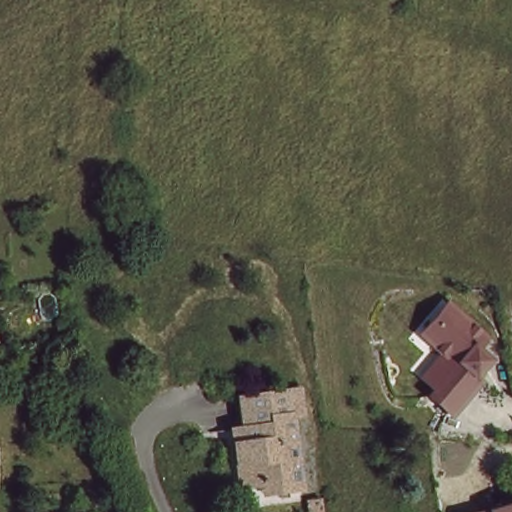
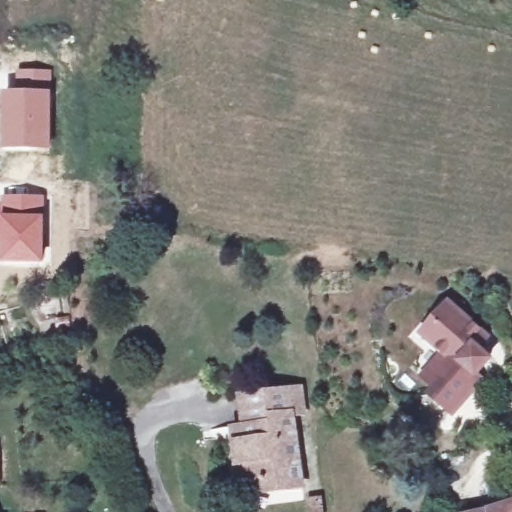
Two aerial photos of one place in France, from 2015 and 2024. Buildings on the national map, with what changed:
new [(17,69),(52,69),(52,91),(51,150),(4,150),(4,91),(17,90),(17,69)]
new [(3,194),(44,195),(44,263),(0,264),(0,234),(2,209),(3,194)]
new [(0,234),(0,209),(2,209),(0,234)]
unchanged [(468,362),(463,368),(469,373),(439,408),(416,388),(430,373),(416,361),(430,346),(410,329),(437,298),(474,331),(464,342),(471,348),(476,353),(468,362)]
unchanged [(303,489),(267,493),(265,482),(237,483),(235,460),(230,460),(229,440),(243,439),(239,397),(300,393),(303,417),(293,418),(303,489)]
unchanged [(512,499),(512,512),(463,512),(463,511),(512,499)]

